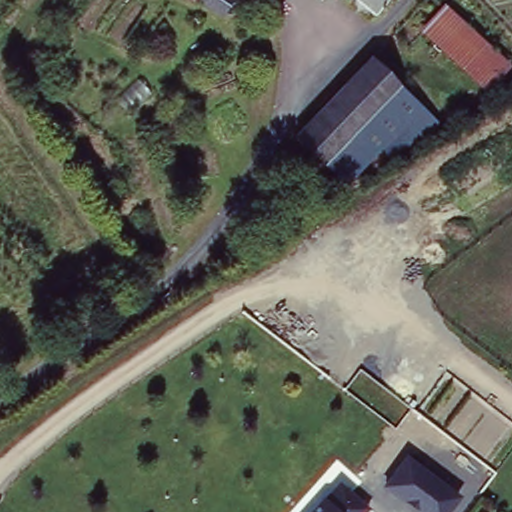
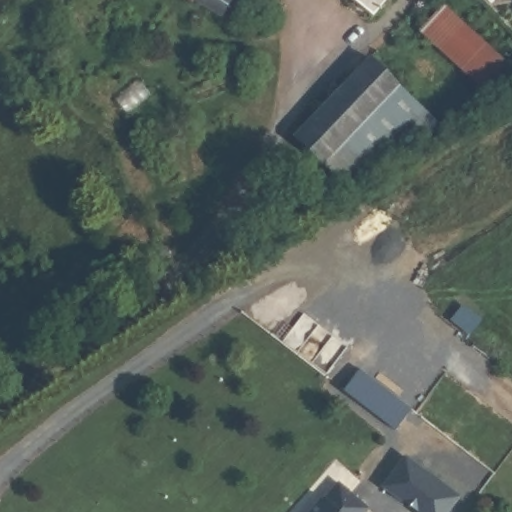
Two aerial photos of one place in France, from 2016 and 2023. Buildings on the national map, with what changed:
unchanged [(226,0),(216,15),(191,0),(226,0)]
unchanged [(366,0),(385,0),(377,9),(366,0)]
unchanged [(415,31),(444,1),(511,65),(484,92),(415,31)]
unchanged [(365,55),(432,123),(402,154),(386,140),(352,177),(296,125),(365,55)]
new [(360,367),(411,410),(395,430),(344,387),(360,367)]
unchanged [(463,497),(452,512),(416,512),(382,485),(403,455),(463,497)]
unchanged [(328,493),(329,495),(343,478),(371,504),(365,512),(312,512),(328,493)]

